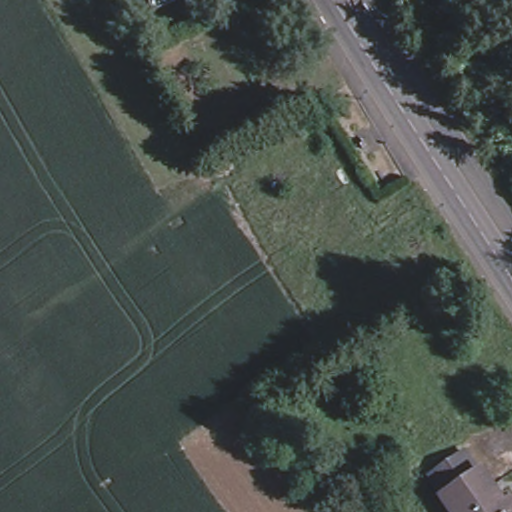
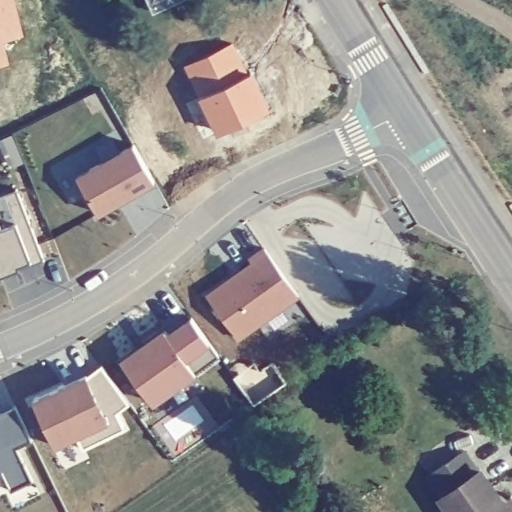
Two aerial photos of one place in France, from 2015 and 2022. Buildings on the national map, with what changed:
new [(3,44),(8,66),(0,68),(0,0),(15,0),(24,37),(3,44)]
unchanged [(155,0),(167,0),(157,5),(155,0)]
new [(232,44),(250,79),(254,77),(270,113),(217,139),(199,103),(183,69),(232,44)]
new [(158,180),(101,213),(80,176),(136,143),(158,180)]
new [(17,269),(15,265),(3,271),(5,279),(0,281),(0,199),(20,190),(45,257),(17,269)]
new [(302,295),(240,338),(210,295),(256,263),(252,259),(267,247),(302,295)]
new [(220,355),(153,402),(125,363),(149,346),(145,342),(164,327),(169,334),(194,316),(220,355)]
new [(35,397),(64,383),(67,390),(79,383),(102,366),(127,403),(123,428),(83,448),(77,434),(57,444),(35,397)]
new [(20,447),(35,479),(12,489),(4,472),(0,474),(0,414),(17,405),(35,439),(20,447)]
unchanged [(426,475),(462,450),(476,471),(440,495),(426,475)]
unchanged [(439,497),(440,495),(476,471),(478,470),(506,512),(449,512),(439,497)]
unchanged [(512,509),(512,512),(507,512),(512,509)]

